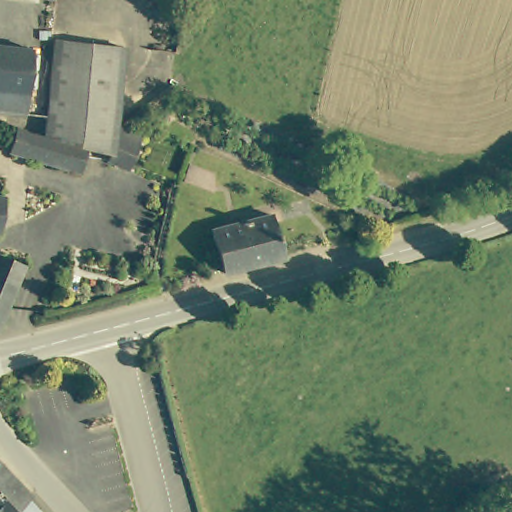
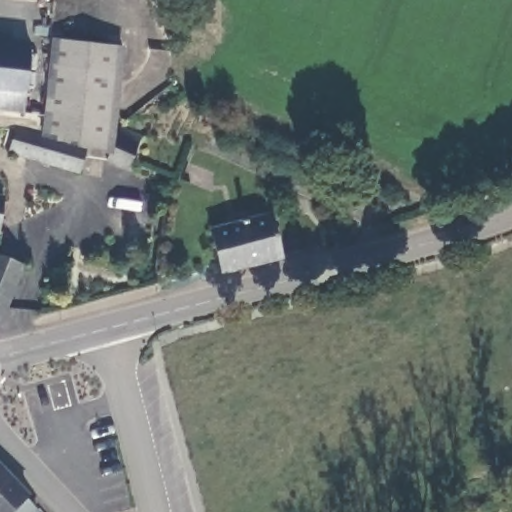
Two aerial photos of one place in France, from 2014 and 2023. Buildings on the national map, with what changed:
unchanged [(52,34),(119,39),(109,143),(43,130),(52,34)]
unchanged [(30,49),(23,113),(0,110),(0,46),(30,49)]
unchanged [(14,124),(43,133),(84,145),(78,167),(8,148),(14,124)]
unchanged [(119,124),(141,134),(126,166),(106,155),(107,153),(119,124)]
unchanged [(211,224),(270,209),(282,254),(222,268),(211,224)]
unchanged [(20,263),(0,315),(0,255),(20,263)]
unchanged [(41,504),(32,512),(0,512),(0,461),(41,504)]

